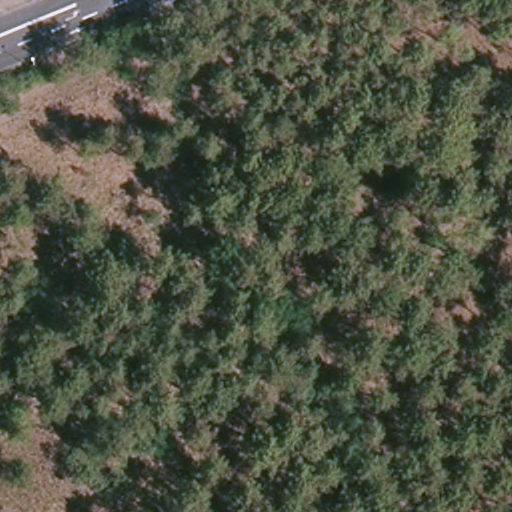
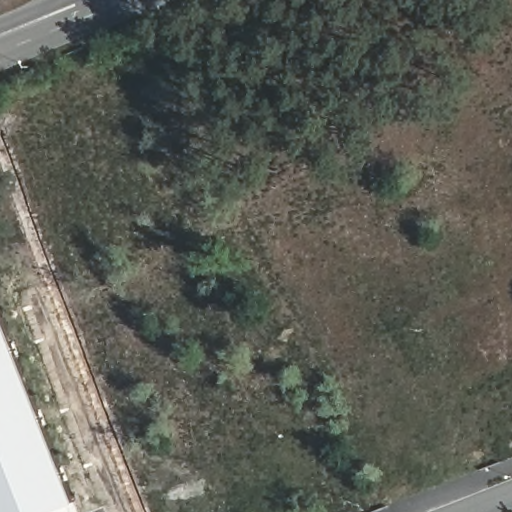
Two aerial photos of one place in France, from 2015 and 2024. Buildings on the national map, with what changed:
new [(56,512),(0,512),(0,308),(76,504),(56,512)]

